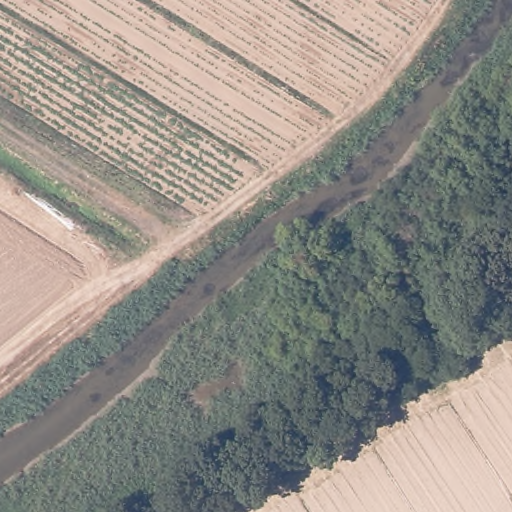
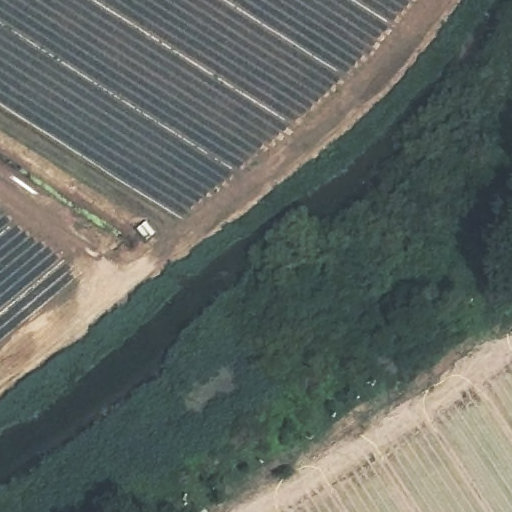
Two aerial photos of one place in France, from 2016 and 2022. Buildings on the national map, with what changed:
[]

